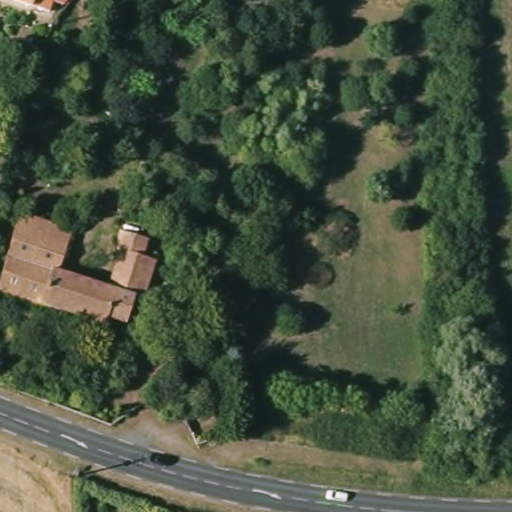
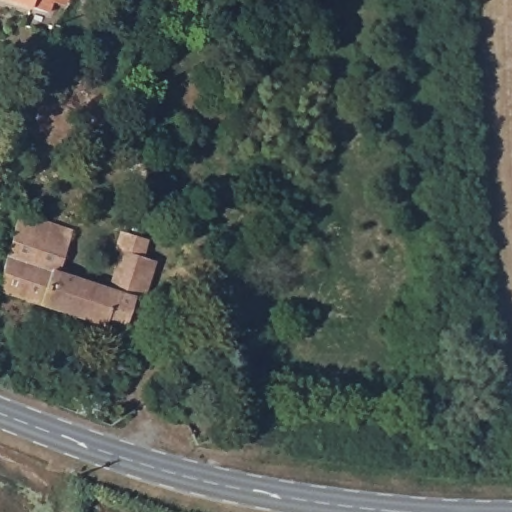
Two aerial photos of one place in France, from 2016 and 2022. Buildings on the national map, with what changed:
unchanged [(31,10),(0,0),(42,0),(38,12),(31,10)]
unchanged [(42,0),(74,0),(71,10),(55,5),(52,17),(38,12),(42,0)]
unchanged [(88,53),(69,108),(45,100),(58,63),(48,61),(59,40),(88,53)]
unchanged [(120,310),(114,329),(0,293),(0,285),(23,213),(73,230),(60,272),(115,290),(117,283),(135,288),(129,311),(120,310)]
unchanged [(142,238),(136,256),(117,250),(123,233),(142,238)]

